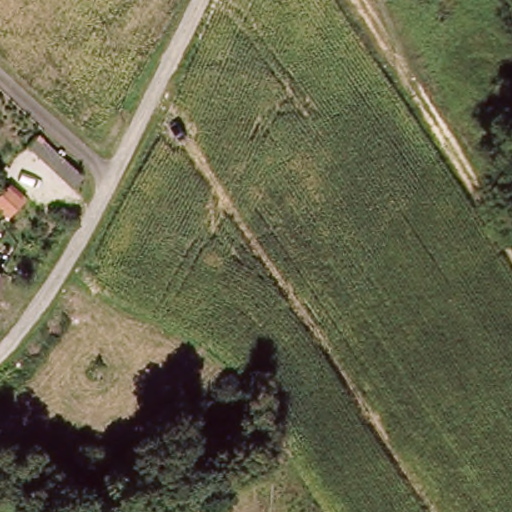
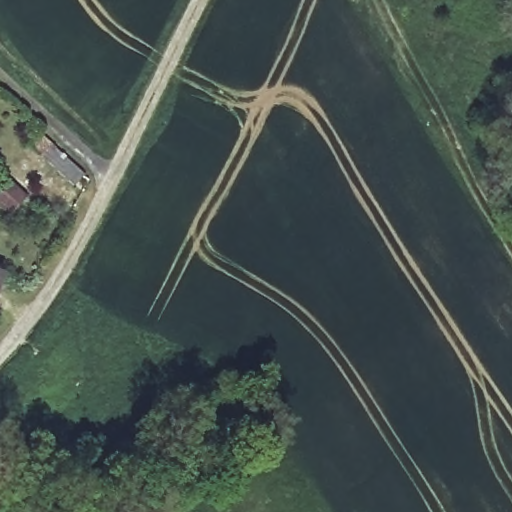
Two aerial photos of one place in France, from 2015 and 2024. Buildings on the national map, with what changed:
unchanged [(0,270),(1,270),(0,273),(0,270)]

